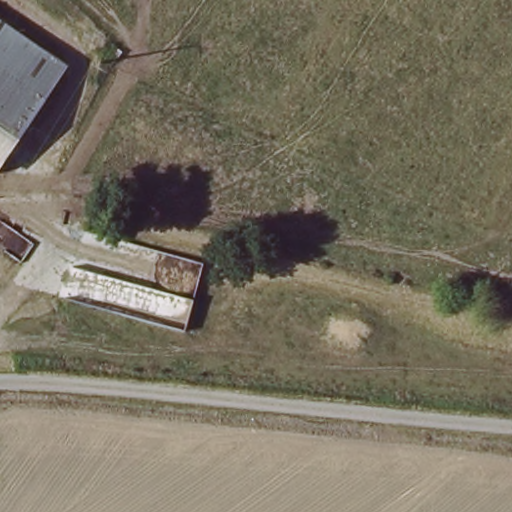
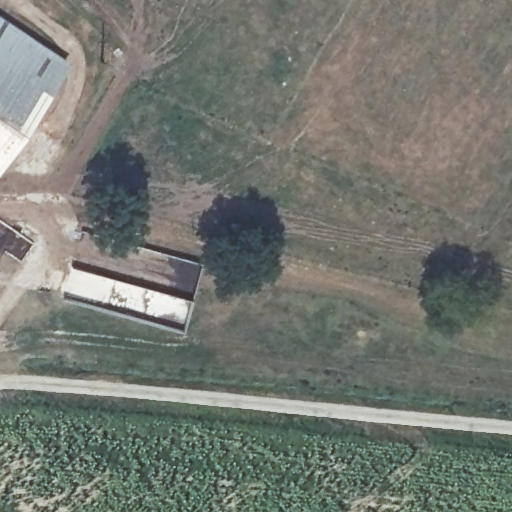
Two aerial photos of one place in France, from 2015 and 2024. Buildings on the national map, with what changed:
unchanged [(0,160),(0,20),(63,59),(0,160)]

